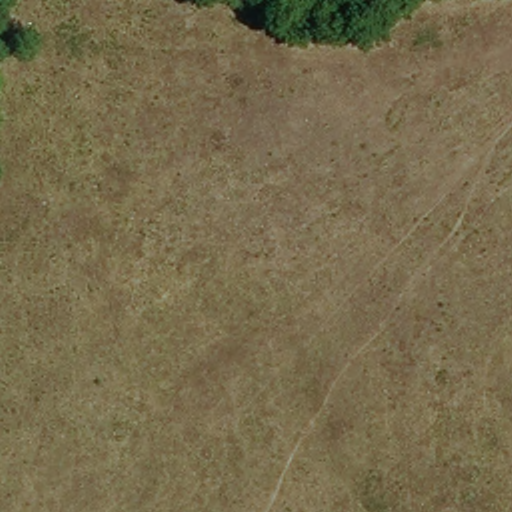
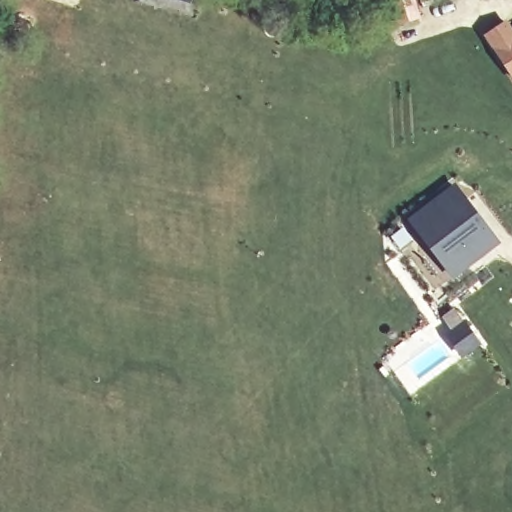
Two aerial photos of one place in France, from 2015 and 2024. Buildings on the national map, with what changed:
new [(141,0),(196,0),(192,14),(141,0)]
new [(394,19),(388,0),(413,0),(416,11),(418,16),(396,24),(394,19)]
new [(485,34),(505,20),(512,32),(512,75),(485,34)]
new [(455,185),(500,242),(459,280),(409,221),(455,185)]

